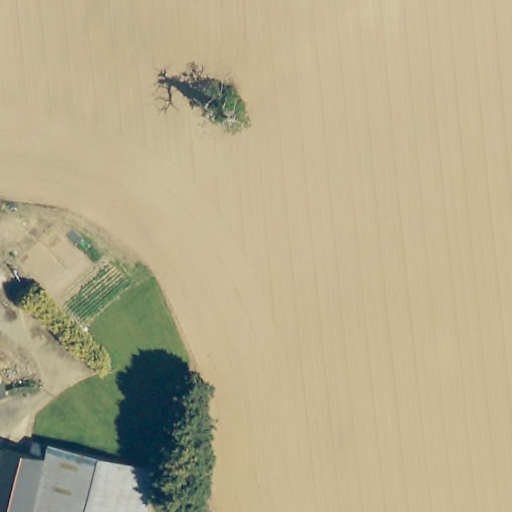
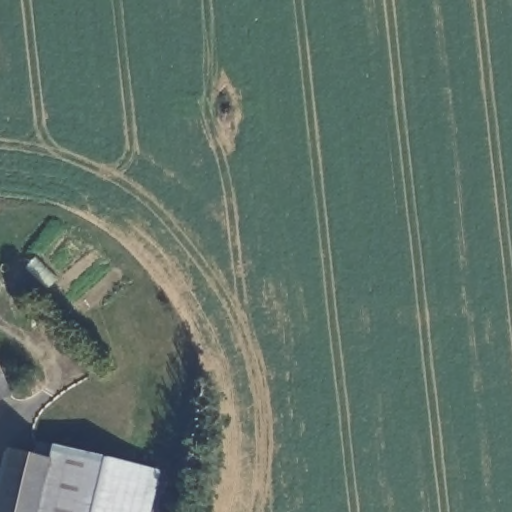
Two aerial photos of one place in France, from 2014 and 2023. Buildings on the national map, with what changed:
unchanged [(9,391),(0,396),(0,372),(9,391)]
unchanged [(2,450),(30,456),(32,443),(49,447),(34,512),(0,512),(0,459),(2,450)]
unchanged [(157,471),(148,512),(34,512),(49,447),(157,471)]

